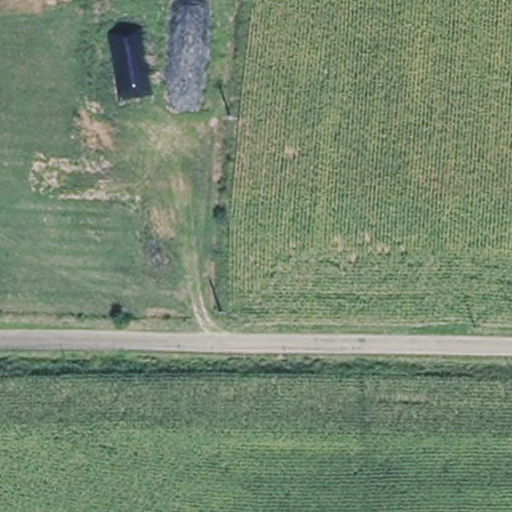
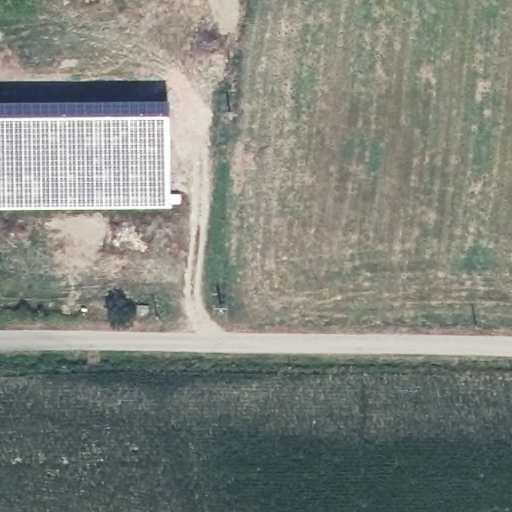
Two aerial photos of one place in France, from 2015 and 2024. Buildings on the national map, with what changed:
new [(0,210),(0,106),(170,105),(171,209),(0,210)]

